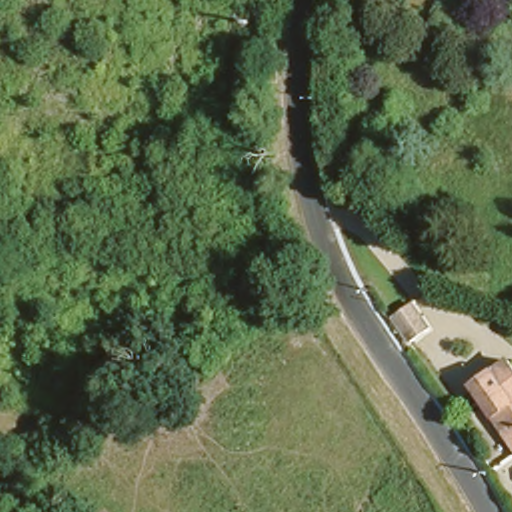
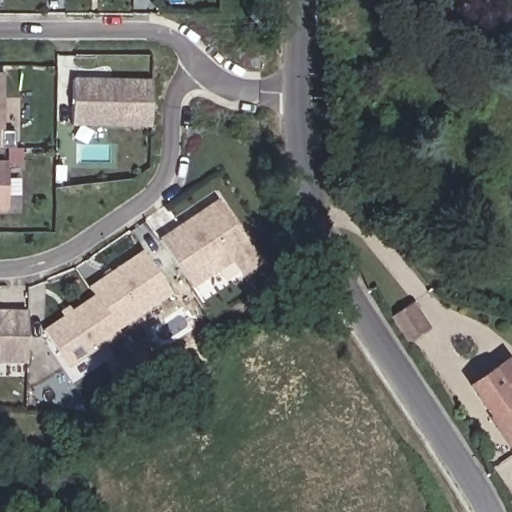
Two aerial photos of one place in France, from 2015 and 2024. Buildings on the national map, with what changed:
new [(1,133),(0,133),(0,73),(2,73),(1,133)]
new [(71,126),(73,77),(152,79),(151,126),(71,126)]
new [(0,210),(0,161),(6,161),(6,210),(0,210)]
new [(237,272),(230,263),(192,288),(159,237),(217,199),(256,257),(237,272)]
new [(117,330),(93,293),(89,286),(142,250),(171,293),(117,330)]
new [(120,335),(69,370),(41,328),(93,293),(117,330),(120,335)]
unchanged [(428,329),(409,342),(391,316),(411,303),(428,329)]
new [(0,363),(0,309),(28,310),(27,363),(0,363)]
new [(132,376),(124,363),(113,347),(125,339),(136,355),(145,367),(132,376)]
unchanged [(506,425),(471,375),(508,350),(512,356),(512,434),(507,427),(506,425)]

